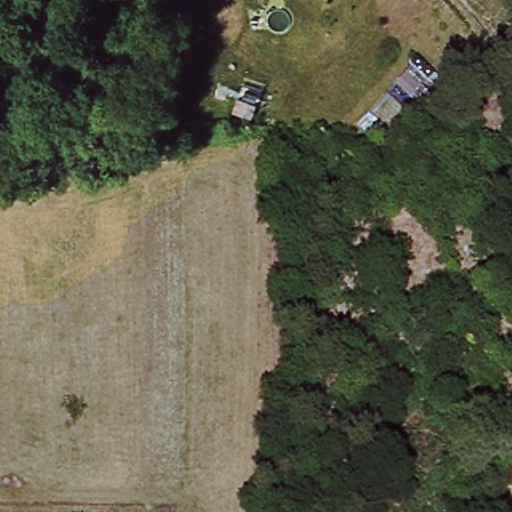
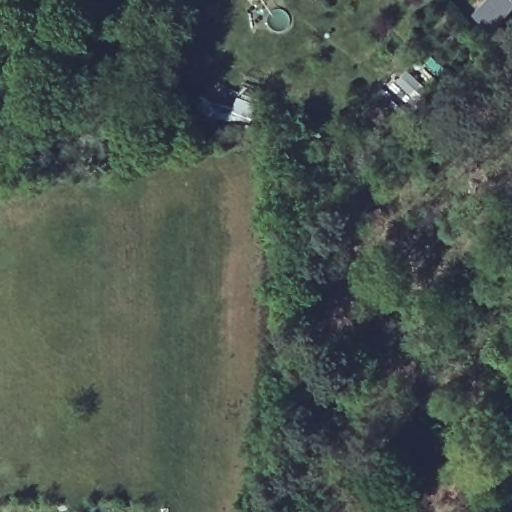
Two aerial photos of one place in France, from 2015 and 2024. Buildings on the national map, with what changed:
new [(484,0),(508,0),(512,4),(498,20),(486,34),(470,14),(480,4),(484,0)]

